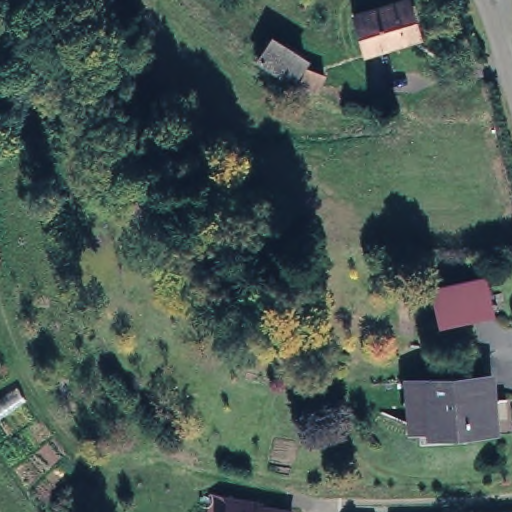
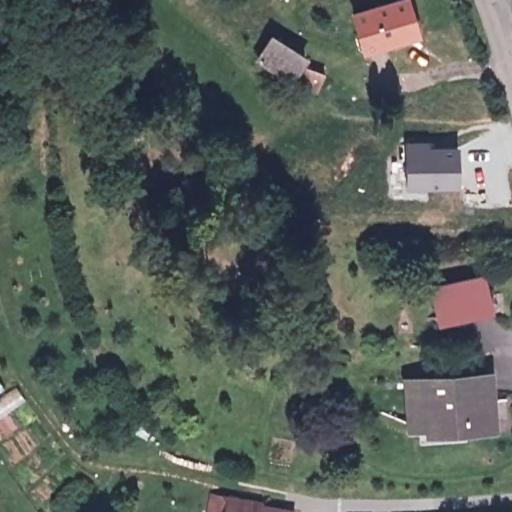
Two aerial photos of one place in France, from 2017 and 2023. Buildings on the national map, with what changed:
unchanged [(411,0),(418,23),(365,39),(356,6),(374,0),(411,0)]
unchanged [(300,49),(288,69),(255,49),(267,29),(300,49)]
unchanged [(323,65),(316,80),(297,73),(303,57),(323,65)]
new [(406,143),(428,143),(429,148),(457,147),(461,186),(406,188),(406,143)]
unchanged [(482,270),(488,303),(437,313),(429,281),(482,270)]
unchanged [(430,418),(409,419),(408,370),(429,370),(429,369),(490,366),(492,419),(468,419),(430,420),(430,418)]
unchanged [(223,498),(259,500),(283,504),(289,505),(288,512),(221,512),(223,498)]

